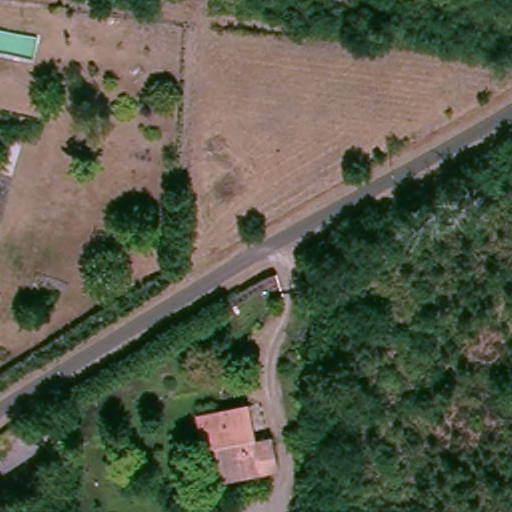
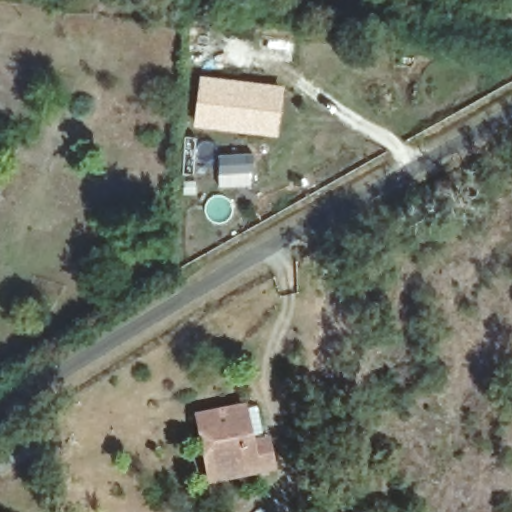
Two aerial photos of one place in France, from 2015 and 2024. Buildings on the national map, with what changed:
new [(193,126),(200,76),(283,86),(277,136),(193,126)]
demolished [(27,102),(21,133),(10,129),(17,99),(27,102)]
unchanged [(200,438),(197,414),(241,410),(247,447),(263,446),(266,476),(237,479),(205,483),(200,438)]
unchanged [(50,444),(7,472),(0,460),(0,459),(42,431),(50,444)]

